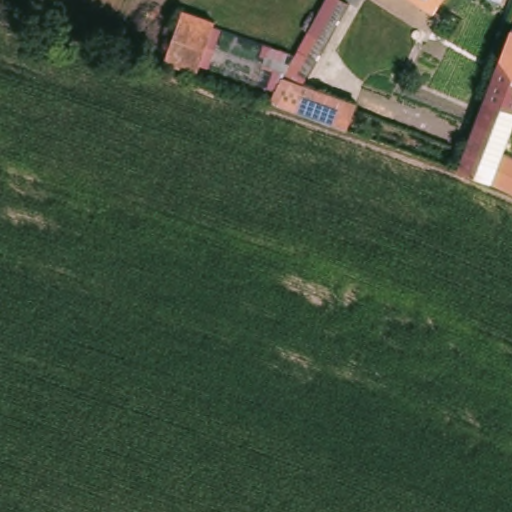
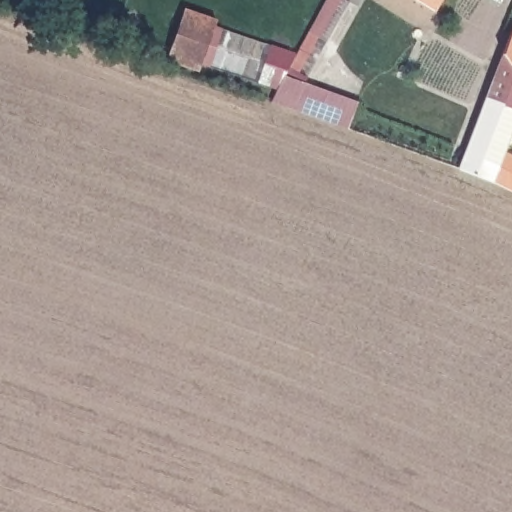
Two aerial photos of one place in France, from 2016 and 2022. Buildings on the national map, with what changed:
unchanged [(361,99),(350,128),(264,98),(275,68),(259,61),(265,42),(300,49),(324,0),(344,0),(297,78),(361,99)]
unchanged [(217,20),(198,73),(165,61),(184,9),(217,20)]
unchanged [(512,153),(512,189),(498,183),(463,169),(512,40),(512,144),(509,152),(512,153)]

